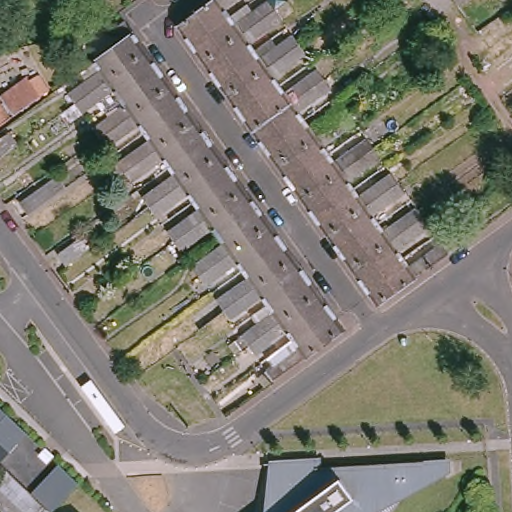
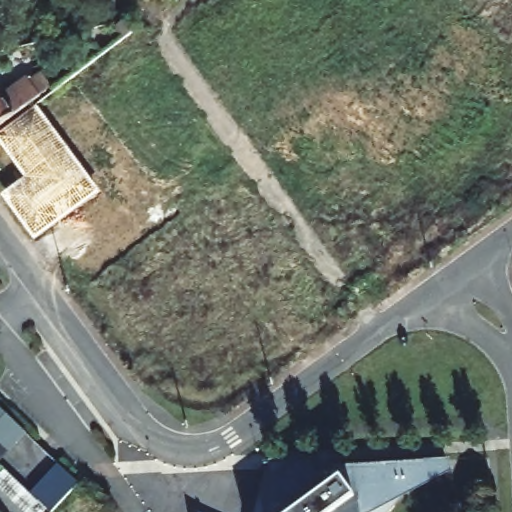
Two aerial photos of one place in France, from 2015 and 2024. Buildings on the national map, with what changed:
demolished [(194,47),(181,30),(223,0),(242,0),(228,10),(234,19),(194,47)]
demolished [(220,82),(207,65),(194,47),(234,19),(238,25),(262,9),(268,5),(272,2),(279,12),(286,21),(281,25),(276,29),(253,45),(259,55),(220,82)]
demolished [(68,95),(71,94),(78,90),(100,74),(93,63),(104,55),(132,35),(133,35),(146,55),(158,71),(119,100),(113,91),(90,107),(84,111),(80,114),(75,105),(68,95)]
demolished [(231,99),(220,82),(259,55),(262,60),(286,43),(291,39),(296,35),(304,45),(310,54),(305,57),(299,61),(276,79),(284,88),(244,116),(243,115),(231,99)]
demolished [(92,130),(95,127),(101,123),(124,107),(119,100),(158,71),(172,90),(173,92),(184,107),(144,135),(138,126),(115,142),(109,146),(105,149),(99,141),(92,130)]
demolished [(244,116),(284,88),(294,80),(299,86),(311,78),(317,74),(321,71),(328,81),(334,90),(331,92),(324,96),(301,113),(308,122),(269,150),(256,134),(244,116)]
unchanged [(31,78),(44,96),(0,128),(0,88),(6,96),(31,78)]
demolished [(277,161),(269,150),(308,122),(314,130),(336,114),(343,110),(346,106),(354,116),(361,125),(356,129),(351,132),(327,149),(332,156),(293,184),(281,168),(279,164),(277,161)]
demolished [(118,165),(120,162),(126,159),(149,142),(144,135),(184,107),(196,125),(208,140),(169,167),(164,160),(140,176),(133,181),(130,184),(124,175),(118,165)]
new [(24,179),(0,146),(0,134),(35,108),(98,194),(33,240),(1,195),(24,179)]
demolished [(0,153),(0,140),(6,149),(0,153)]
demolished [(143,201),(146,199),(152,194),(176,176),(169,167),(208,140),(221,158),(233,175),(194,203),(188,195),(164,211),(158,215),(154,217),(148,210),(143,201)]
demolished [(293,184),(332,156),(338,165),(361,148),(368,144),(371,141),(378,151),(384,159),(380,161),(374,165),(351,181),(357,191),(319,220),(306,202),(293,184)]
demolished [(168,234),(170,232),(176,228),(199,210),(194,203),(233,175),(245,192),(251,200),(256,207),(258,210),(218,237),(213,229),(189,246),(183,250),(180,252),(173,242),(168,234)]
demolished [(343,254),(334,242),(331,236),(321,223),(319,220),(357,191),(362,199),(386,181),(392,177),(396,175),(403,185),(409,193),(405,196),(399,200),(375,218),(381,225),(394,216),(399,223),(410,215),(416,211),(419,209),(427,219),(434,229),(431,231),(424,235),(400,253),(405,260),(366,287),(363,283),(354,270),(343,254)]
demolished [(33,190),(39,199),(23,210),(16,202),(33,190)]
demolished [(191,268),(194,266),(201,261),(224,245),(218,237),(258,210),(271,227),(282,244),(243,272),(238,266),(215,281),(209,286),(206,288),(199,279),(191,268)]
demolished [(216,304),(220,301),(226,297),(249,280),(243,272),(282,244),(295,261),(308,278),(268,306),(263,297),(239,315),(233,319),(229,321),(223,313),(216,304)]
demolished [(366,287),(405,260),(414,271),(438,254),(444,250),(446,248),(454,257),(451,260),(445,264),(381,310),(366,287)]
demolished [(241,338),(245,335),(251,331),(274,315),(268,306),(308,278),(312,285),(319,295),(332,312),(293,340),(288,333),(264,350),(258,354),(254,356),(248,347),(241,338)]
demolished [(269,369),(275,365),(299,349),(293,340),(332,312),(346,331),(296,369),(284,377),(278,381),(274,384),(265,371),(269,369)]
demolished [(134,372),(126,360),(149,343),(158,355),(134,372)]
unchanged [(0,439),(0,403),(28,430),(10,449),(0,439)]
unchanged [(392,507),(386,512),(267,512),(270,481),(274,480),(274,476),(276,475),(276,470),(319,467),(319,473),(438,461),(444,461),(447,470),(444,471),(387,502),(392,507)]
unchanged [(83,488),(73,498),(63,508),(60,512),(47,512),(34,500),(43,490),(53,479),(63,468),(83,488)]
unchanged [(34,500),(47,512),(0,512),(0,474),(4,470),(34,500)]

